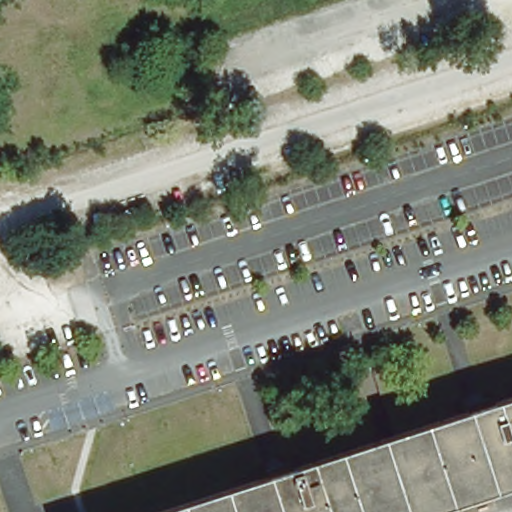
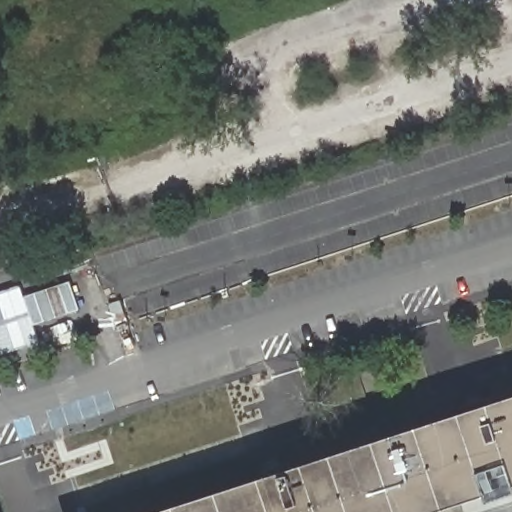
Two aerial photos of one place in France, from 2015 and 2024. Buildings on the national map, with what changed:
new [(22,284),(26,295),(71,280),(81,309),(36,324),(40,341),(0,354),(0,291),(22,284)]
unchanged [(512,479),(410,512),(158,512),(512,398),(512,479)]

